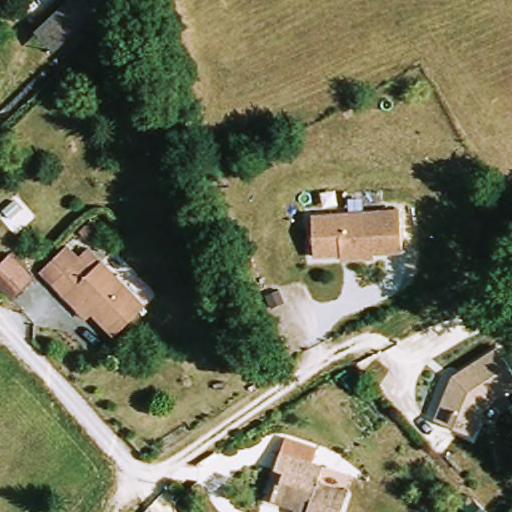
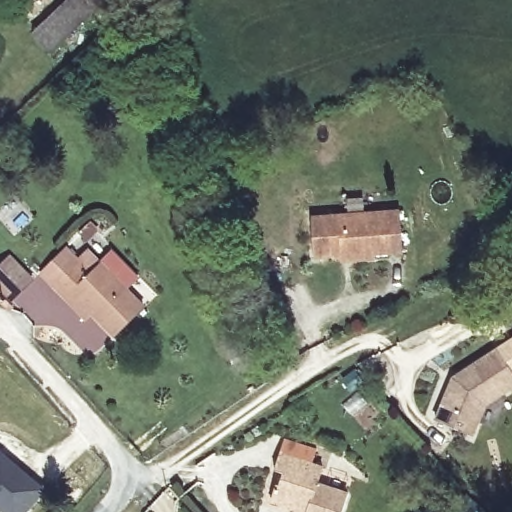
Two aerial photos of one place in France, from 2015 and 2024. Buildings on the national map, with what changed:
unchanged [(32,33),(66,0),(107,0),(51,53),(32,33)]
unchanged [(340,255),(313,257),(310,217),(400,211),(402,252),(374,254),(373,259),(353,260),(341,261),(340,255)]
unchanged [(69,301),(37,273),(69,236),(73,240),(151,307),(122,340),(97,317),(91,323),(69,301)]
unchanged [(34,279),(13,300),(11,298),(0,290),(0,270),(10,258),(32,277),(34,279)]
unchanged [(245,307),(260,335),(237,347),(222,318),(245,307)]
unchanged [(499,344),(512,366),(512,388),(489,401),(477,432),(437,419),(454,374),(499,344)]
unchanged [(371,364),(361,374),(353,365),(364,354),(371,364)]
unchanged [(273,493),(277,493),(279,479),(269,477),(277,445),(310,453),(306,468),(317,471),(314,488),(336,490),(345,494),(344,502),(342,512),(289,512),(270,507),(273,493)]
new [(26,512),(0,512),(0,453),(1,452),(43,489),(26,512)]

